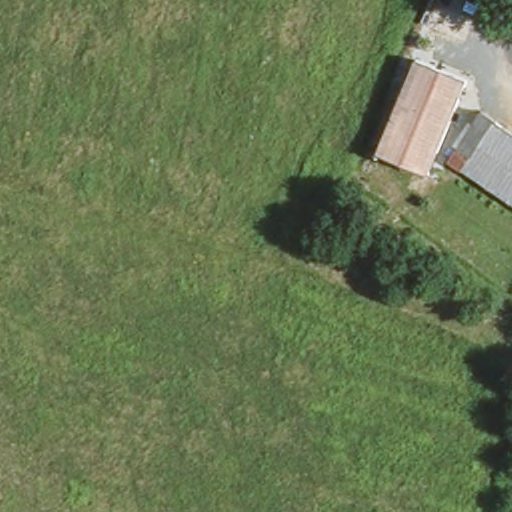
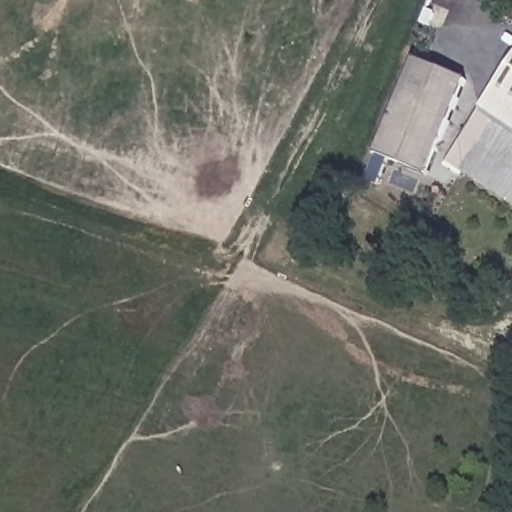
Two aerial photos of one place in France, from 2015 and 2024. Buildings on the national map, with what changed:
unchanged [(429,175),(378,155),(418,60),(469,81),(429,175)]
new [(512,66),(512,131),(482,111),(512,66)]
unchanged [(479,110),(482,111),(512,131),(512,204),(444,161),(479,110)]

